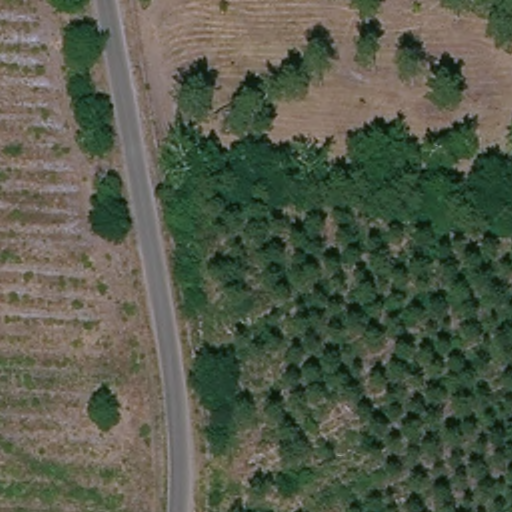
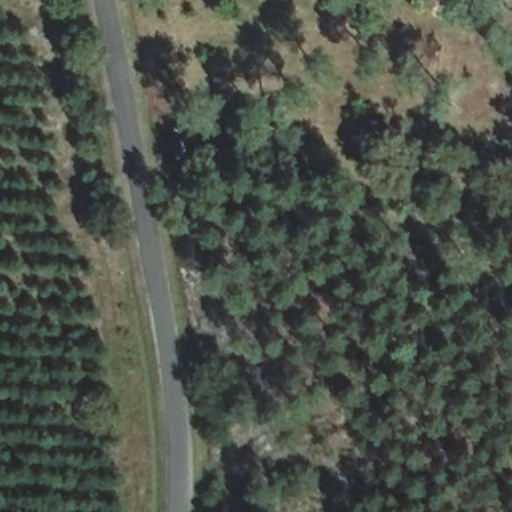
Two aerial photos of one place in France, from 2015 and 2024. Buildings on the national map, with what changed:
[]

